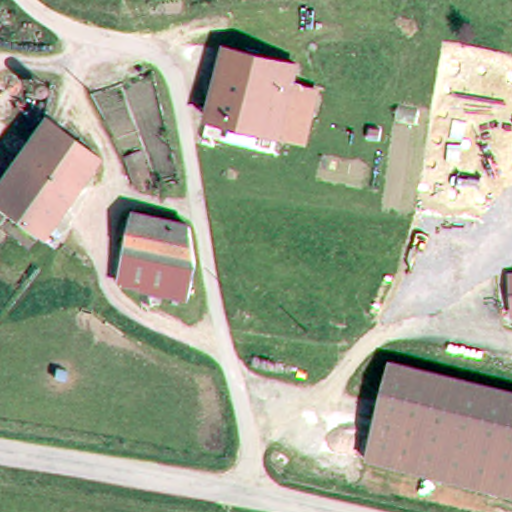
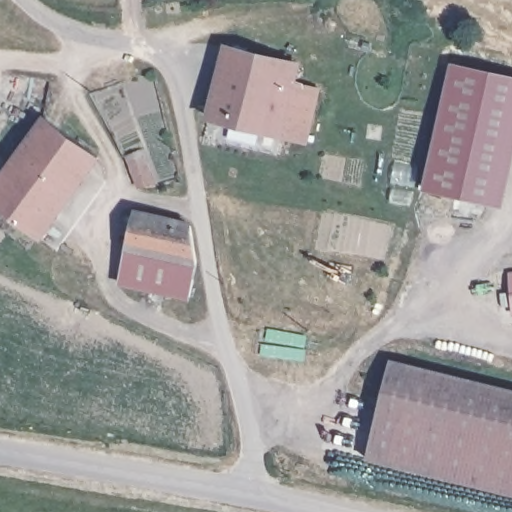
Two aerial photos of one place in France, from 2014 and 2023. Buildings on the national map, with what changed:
unchanged [(317,88),(303,138),(205,110),(225,40),(297,61),(292,80),(317,88)]
new [(425,188),(452,61),(512,74),(512,171),(505,205),(425,188)]
unchanged [(2,185),(22,155),(49,113),(102,151),(42,235),(0,205),(0,183),(2,185)]
unchanged [(120,280),(122,273),(134,208),(187,220),(191,267),(187,285),(185,299),(120,280)]
unchanged [(512,296),(510,273),(512,272),(512,296)]
unchanged [(387,357),(512,385),(512,491),(363,454),(387,357)]

